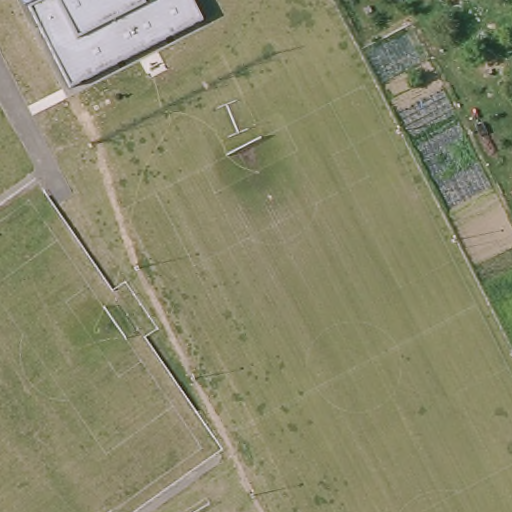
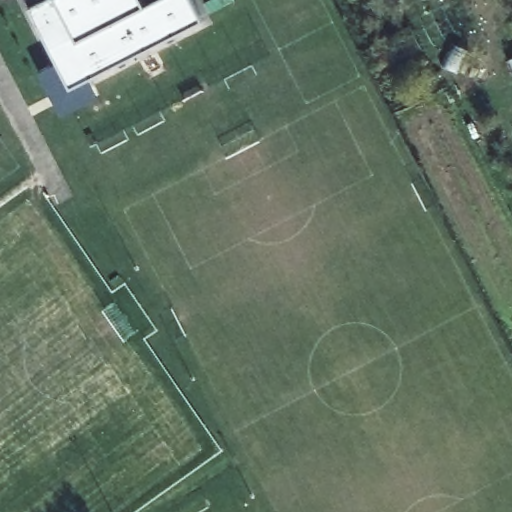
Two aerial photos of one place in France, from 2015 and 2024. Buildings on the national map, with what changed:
unchanged [(146,6),(157,0),(192,0),(202,22),(69,87),(30,10),(47,0),(143,0),(146,6)]

